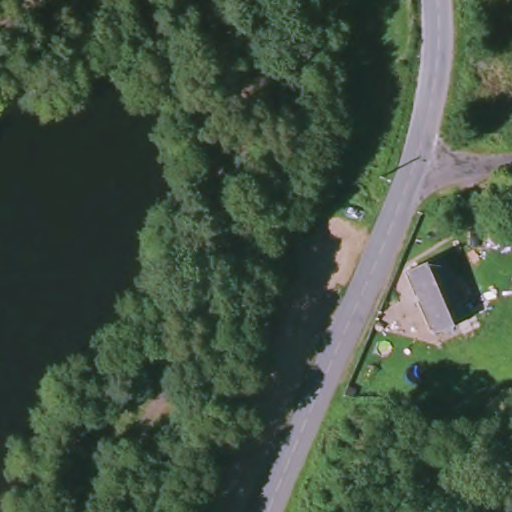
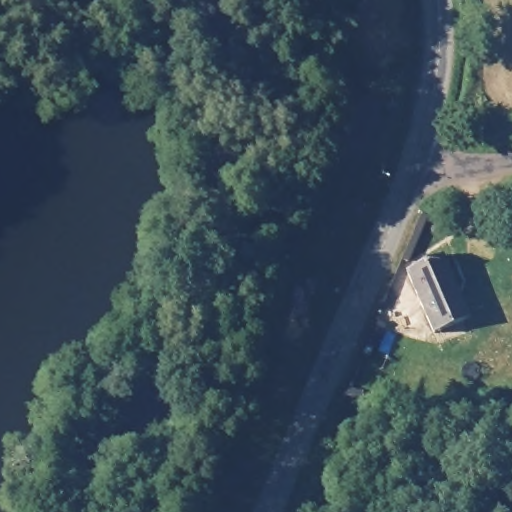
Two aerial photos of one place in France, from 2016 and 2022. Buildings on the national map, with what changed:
unchanged [(441,260),(472,317),(438,334),(407,276),(441,260)]

